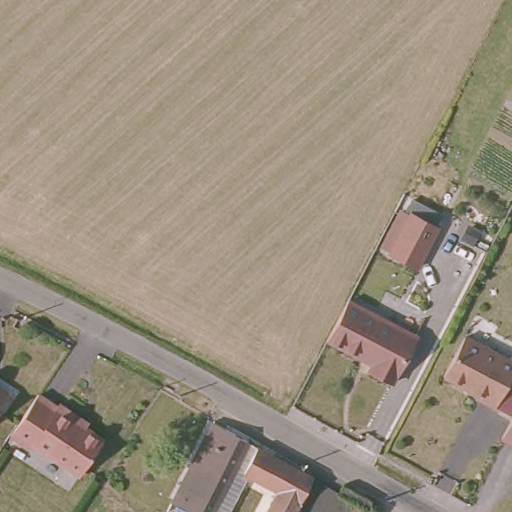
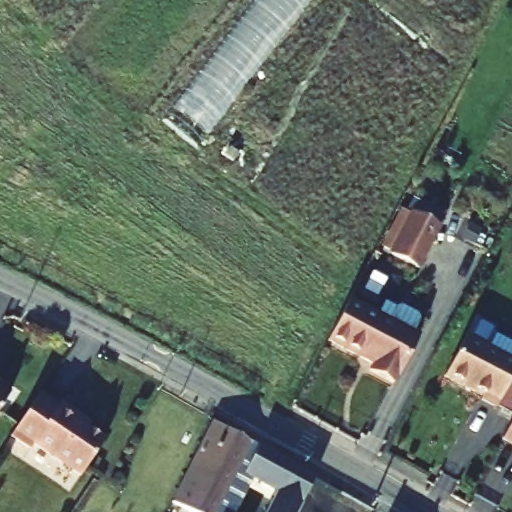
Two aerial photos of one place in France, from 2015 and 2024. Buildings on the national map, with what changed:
new [(162,126),(257,0),(311,0),(195,152),(162,126)]
unchanged [(407,213),(415,216),(435,226),(413,268),(393,258),(387,255),(407,213)]
unchanged [(327,339),(348,297),(368,307),(349,345),(347,348),(327,339)]
unchanged [(349,345),(368,307),(418,332),(394,379),(371,368),(375,361),(347,348),(349,345)]
unchanged [(512,360),(512,372),(495,405),(480,398),(477,393),(444,376),(465,335),(512,360)]
unchanged [(7,391),(0,403),(0,387),(7,391)]
unchanged [(55,405),(58,401),(82,417),(77,422),(103,439),(80,475),(32,443),(29,448),(8,435),(37,392),(55,405)]
unchanged [(512,422),(512,438),(505,435),(512,422)]
unchanged [(216,512),(190,512),(171,502),(212,423),(250,444),(216,512)]
unchanged [(280,489),(244,471),(257,448),(315,477),(296,512),(268,512),(280,489)]

